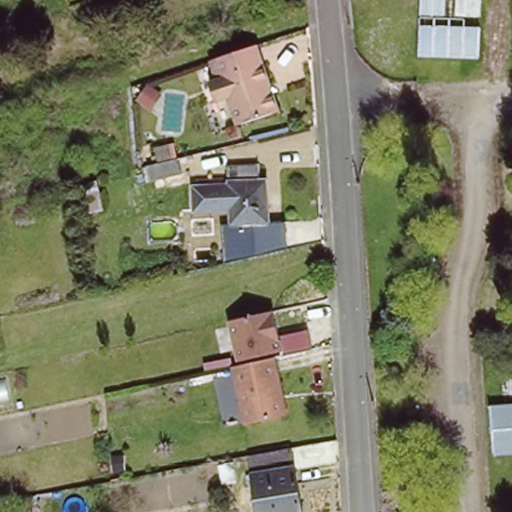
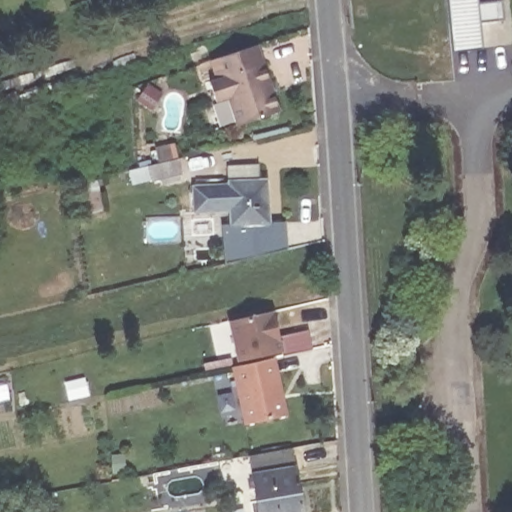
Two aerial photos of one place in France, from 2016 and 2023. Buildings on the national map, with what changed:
unchanged [(426,0),(486,0),(484,46),(465,46),(465,60),(446,60),(444,46),(424,44),(426,0)]
unchanged [(278,111),(236,125),(226,97),(214,101),(208,82),(216,80),(209,60),(256,45),(278,111)]
unchanged [(178,174),(149,181),(144,165),(174,158),(178,174)]
unchanged [(245,232),(244,224),(233,224),(232,205),(196,207),(194,182),(230,180),(228,165),(259,163),(259,177),(268,177),(271,222),(261,223),(262,231),(245,232)]
unchanged [(272,310),(283,353),(276,358),(236,367),(228,320),(272,310)]
unchanged [(244,406),(236,367),(276,358),(284,398),(289,416),(248,424),(244,406)]
demolished [(494,457),(488,406),(512,403),(512,455),(494,457)]
unchanged [(296,462),(303,512),(259,512),(253,469),(296,462)]

